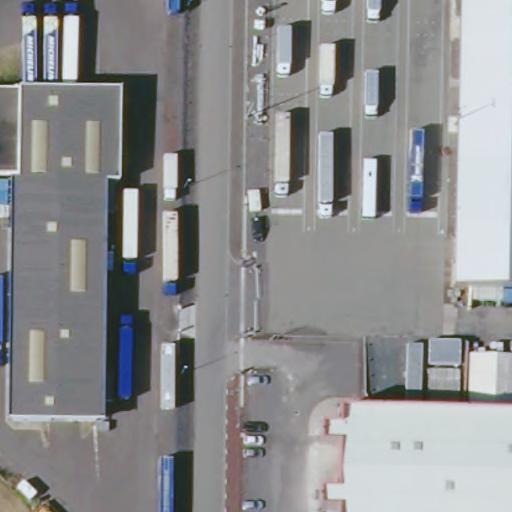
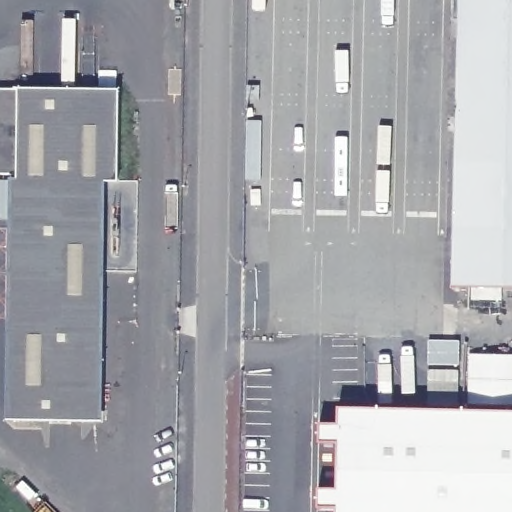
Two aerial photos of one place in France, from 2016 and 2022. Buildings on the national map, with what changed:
unchanged [(469,287),(452,287),(459,0),(512,0),(512,289),(469,287)]
unchanged [(99,180),(95,419),(14,418),(17,172),(0,172),(0,87),(120,88),(119,180),(99,180)]
unchanged [(317,509),(317,489),(336,489),(337,444),(319,444),(319,423),(337,424),(337,408),(512,412),(512,512),(335,512),(336,509),(317,509)]

